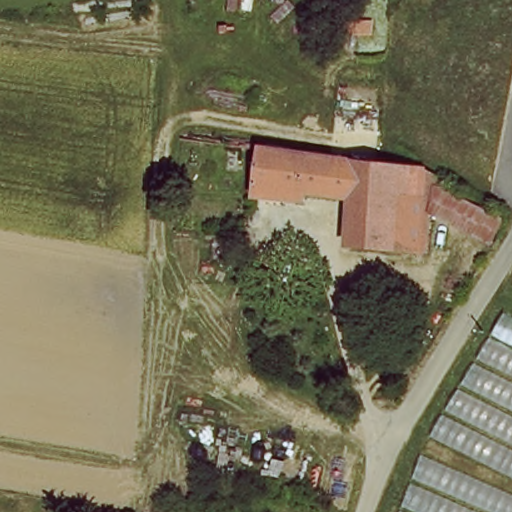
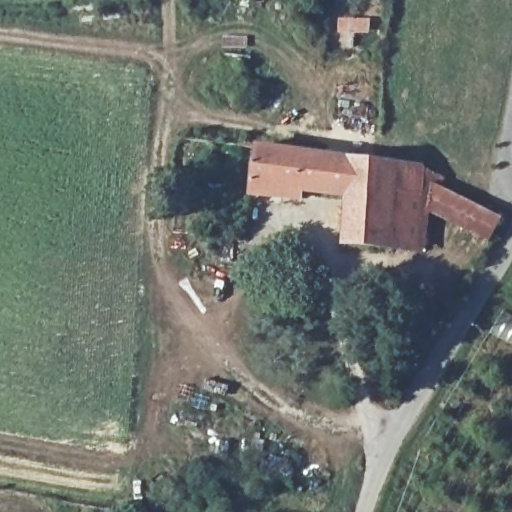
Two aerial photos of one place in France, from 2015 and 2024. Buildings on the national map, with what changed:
unchanged [(254,158),(254,144),(272,146),(272,151),(343,159),(344,196),(299,189),(298,199),(248,193),(251,160),(254,158)]
unchanged [(343,159),(414,168),(412,193),(387,192),(386,245),(341,246),(344,196),(343,159)]
unchanged [(425,212),(430,180),(499,213),(487,242),(425,212)]
unchanged [(387,192),(412,193),(409,248),(386,245),(387,192)]
demolished [(375,318),(389,354),(364,361),(352,326),(375,318)]
demolished [(426,449),(506,318),(512,321),(512,512),(403,512),(426,449)]
demolished [(214,478),(210,500),(156,494),(160,471),(214,478)]

